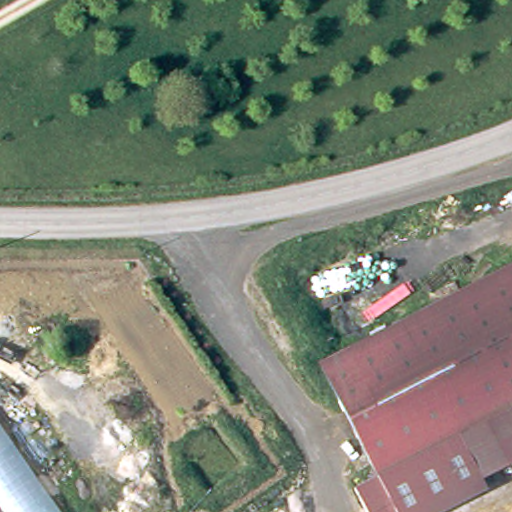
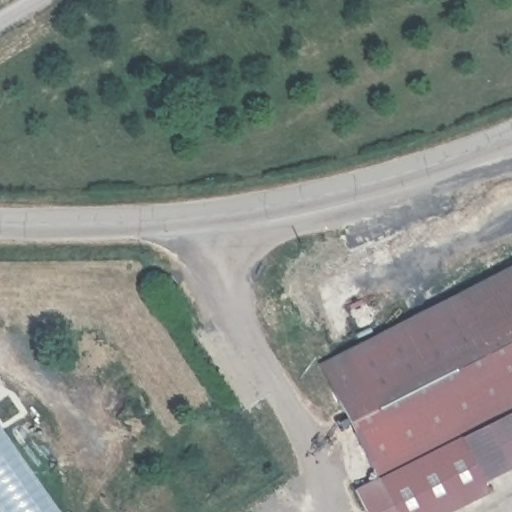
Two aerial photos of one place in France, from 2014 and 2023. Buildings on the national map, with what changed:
unchanged [(489,492),(450,512),(368,512),(357,491),(372,483),(372,479),(372,476),(375,474),(377,472),(322,365),(507,270),(512,267),(512,463),(483,478),(489,492)]
unchanged [(0,507),(0,423),(63,512),(4,512),(0,507)]
unchanged [(4,512),(0,512),(0,507),(4,512)]

